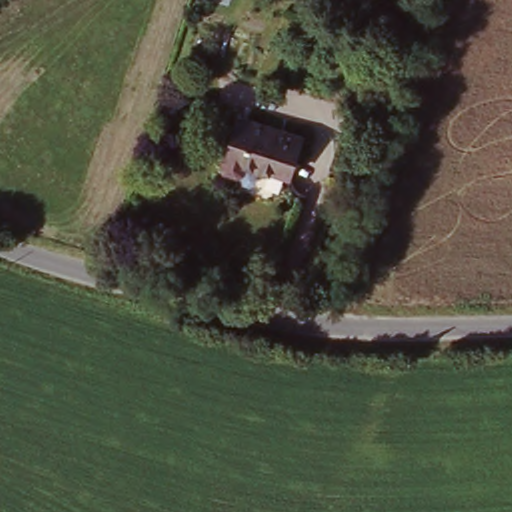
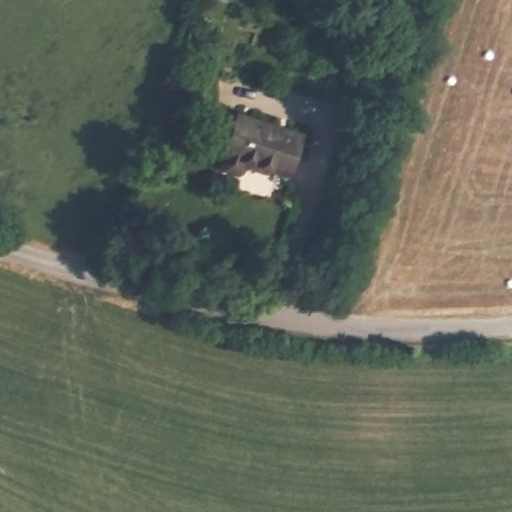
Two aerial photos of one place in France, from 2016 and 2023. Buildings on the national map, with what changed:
unchanged [(244,113),(309,134),(296,174),(275,166),(273,171),(251,164),(249,170),(244,173),(230,169),(227,164),(231,153),(244,113)]

